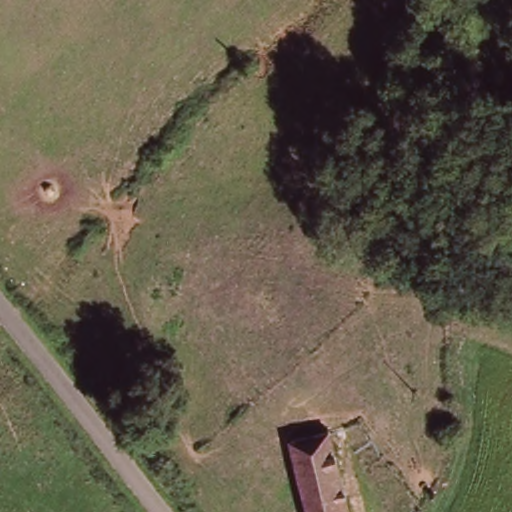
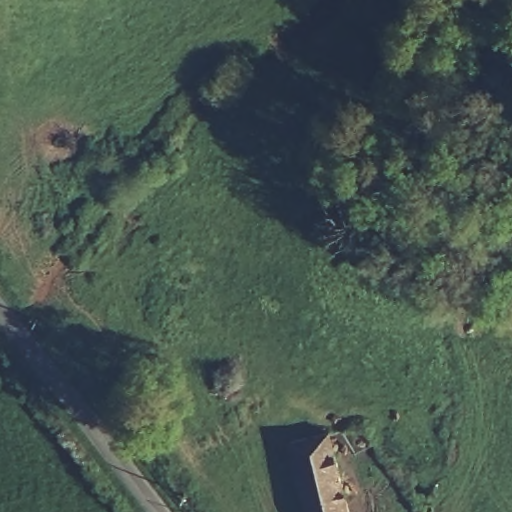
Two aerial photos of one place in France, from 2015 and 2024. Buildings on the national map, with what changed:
unchanged [(330,433),(350,512),(309,512),(290,443),(330,433)]

